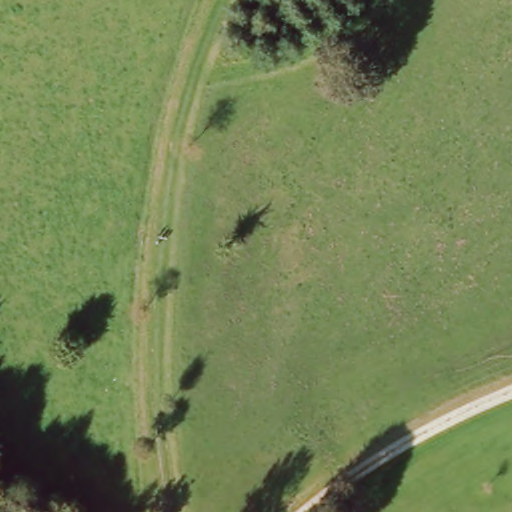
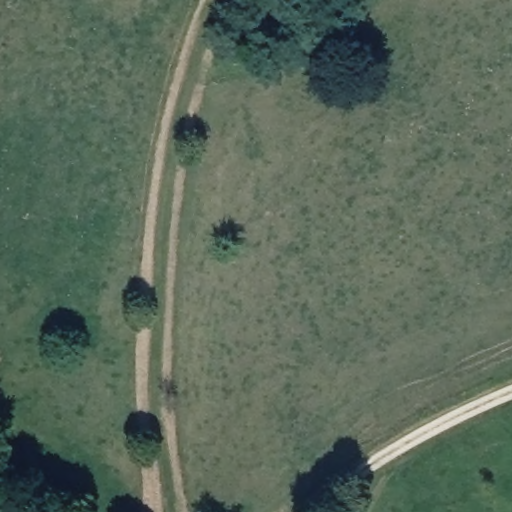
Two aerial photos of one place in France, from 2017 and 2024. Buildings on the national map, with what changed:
[]

